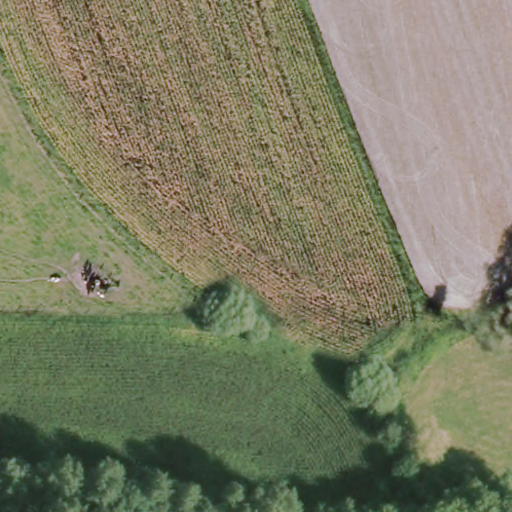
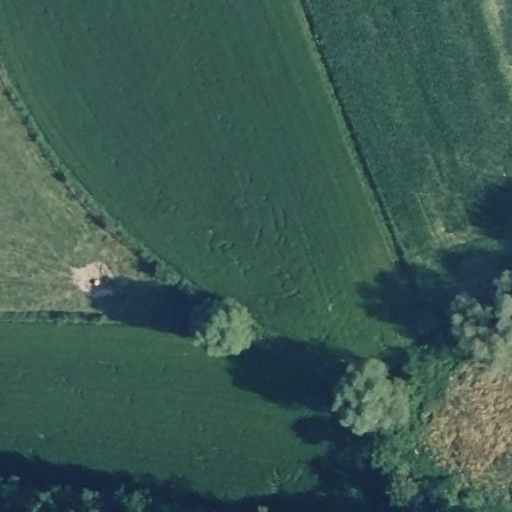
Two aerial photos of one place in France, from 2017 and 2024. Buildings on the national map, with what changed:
unchanged [(50,511),(50,512),(29,512),(29,510),(50,511)]

